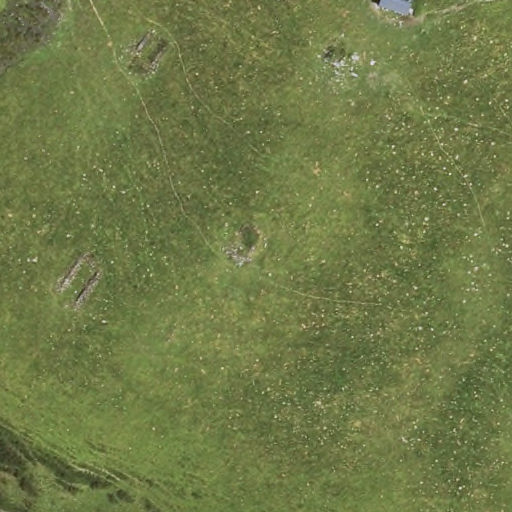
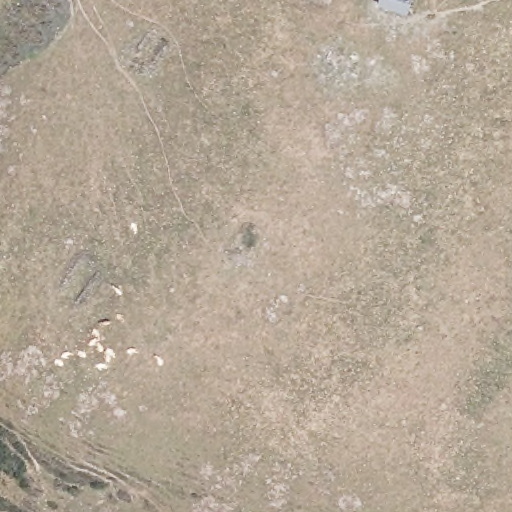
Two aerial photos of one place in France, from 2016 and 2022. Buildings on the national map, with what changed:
unchanged [(388,16),(377,13),(380,0),(416,0),(409,21),(388,16)]

